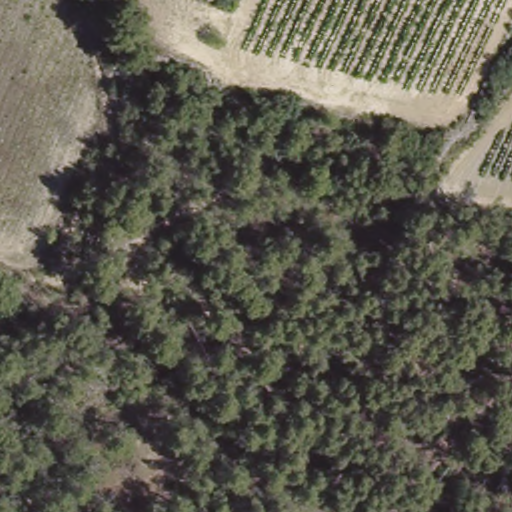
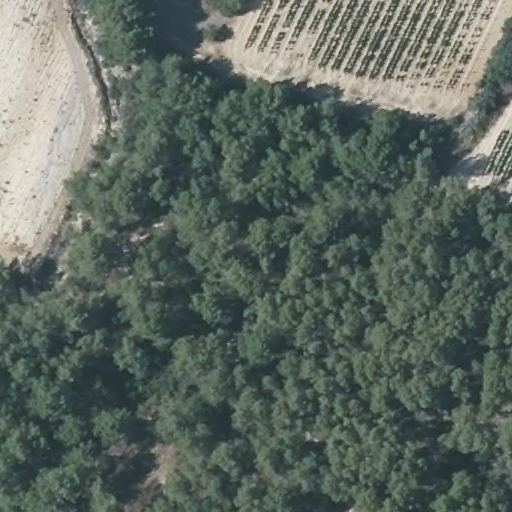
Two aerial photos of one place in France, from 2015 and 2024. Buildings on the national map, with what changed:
unchanged [(199,1),(199,0),(207,0),(199,1)]
unchanged [(457,136),(449,155),(436,149),(442,131),(457,136)]

